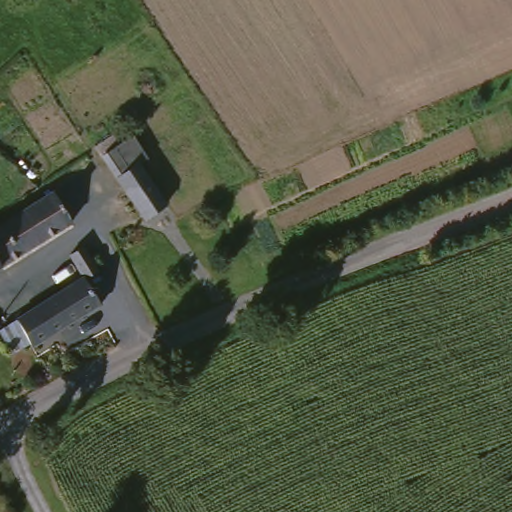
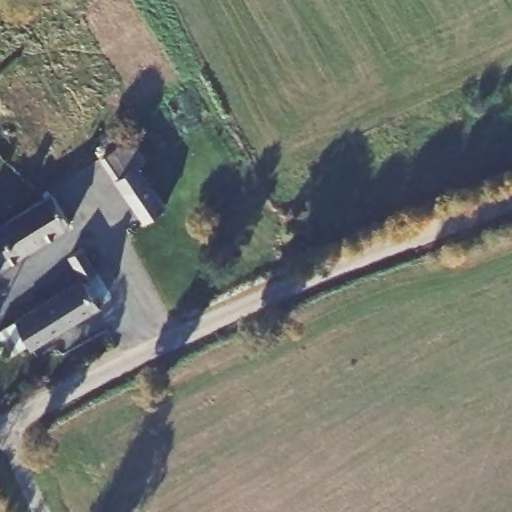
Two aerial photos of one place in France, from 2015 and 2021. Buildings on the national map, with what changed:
unchanged [(134,142),(162,186),(134,203),(108,157),(134,142)]
unchanged [(63,237),(5,272),(0,264),(0,234),(24,220),(48,204),(63,237)]
unchanged [(106,273),(93,280),(83,260),(95,253),(104,270),(106,273)]
unchanged [(5,272),(0,275),(0,264),(5,272)]
unchanged [(10,334),(28,322),(65,297),(93,280),(109,301),(80,321),(42,346),(40,342),(22,353),(10,334)]

